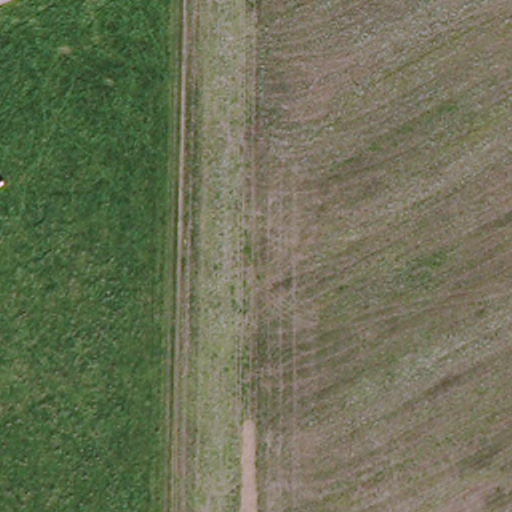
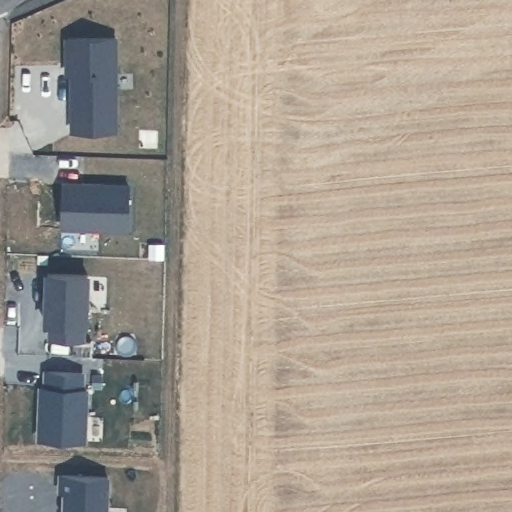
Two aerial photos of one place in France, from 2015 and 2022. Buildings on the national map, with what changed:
new [(70,130),(70,73),(65,73),(65,64),(65,37),(114,37),(113,131),(70,130)]
new [(125,224),(59,223),(59,181),(126,182),(125,224)]
new [(82,324),(80,324),(79,339),(47,338),(48,323),(43,323),(44,274),(84,275),(82,324)]
new [(82,438),(37,438),(38,386),(43,386),(43,370),(79,370),(79,386),(82,386),(82,438)]

